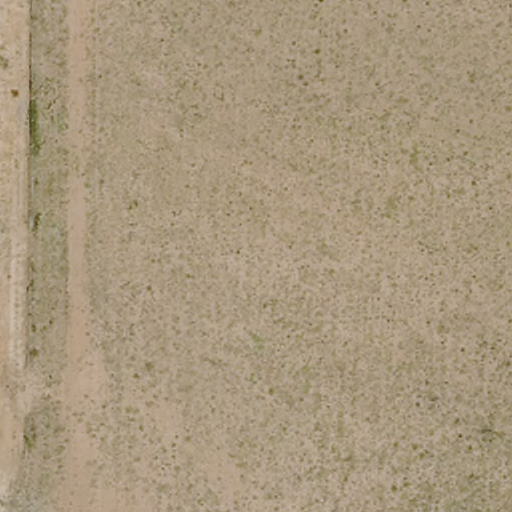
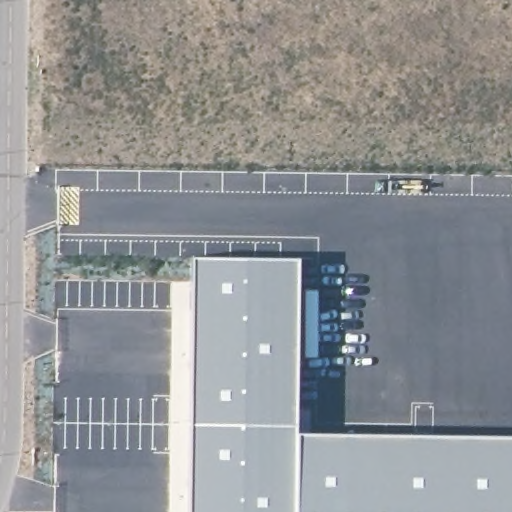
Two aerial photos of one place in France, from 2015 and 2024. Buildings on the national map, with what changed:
new [(190,257),(296,258),(296,434),(512,436),(512,512),(187,512),(190,257)]

